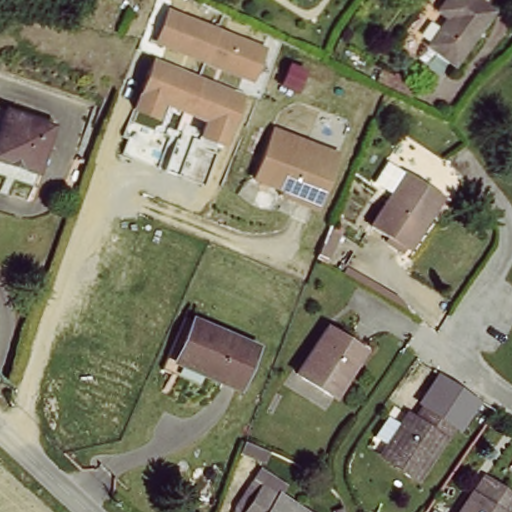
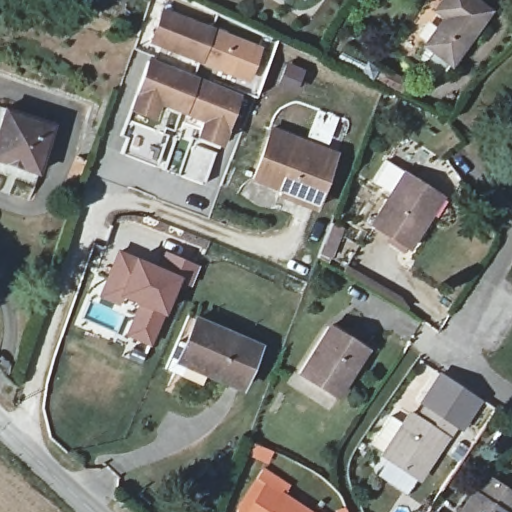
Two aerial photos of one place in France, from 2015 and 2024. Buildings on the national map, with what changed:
unchanged [(487,19),(449,70),(425,52),(442,26),(432,18),(447,0),(461,0),(487,19)]
unchanged [(166,15),(259,52),(247,82),(154,45),(166,15)]
unchanged [(151,62),(239,95),(221,142),(201,135),(206,118),(160,100),(154,115),(134,107),(151,62)]
unchanged [(51,121),(43,169),(0,161),(0,117),(1,111),(51,121)]
unchanged [(257,188),(260,182),(279,133),(342,158),(323,207),(321,212),(257,188)]
unchanged [(442,200),(408,248),(374,225),(409,175),(442,200)]
new [(118,250),(135,257),(159,267),(166,251),(200,266),(193,285),(180,280),(163,315),(150,346),(126,335),(137,303),(122,297),(120,306),(98,296),(118,250)]
unchanged [(185,346),(197,319),(263,349),(244,392),(188,367),(178,363),(185,346)]
unchanged [(367,351),(338,396),(303,372),(334,328),(367,351)]
unchanged [(454,423),(420,476),(385,455),(410,414),(418,418),(427,405),(454,423)]
unchanged [(251,512),(270,481),(319,512),(251,512)]
unchanged [(512,512),(467,512),(485,484),(512,504),(512,512)]

